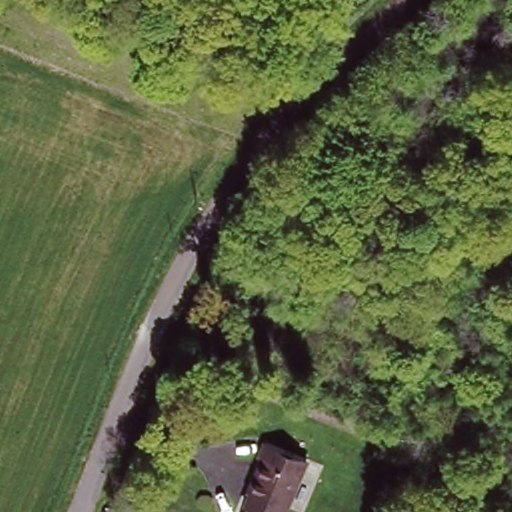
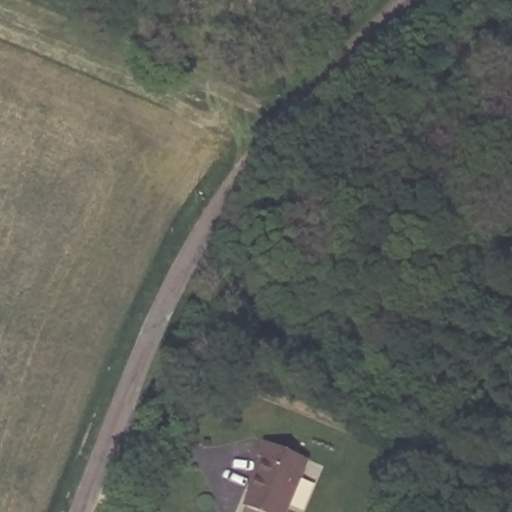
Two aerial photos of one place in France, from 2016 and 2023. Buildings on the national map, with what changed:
unchanged [(261,14),(265,0),(278,0),(274,18),(261,14)]
unchanged [(299,461),(279,512),(241,512),(241,511),(236,509),(255,460),(248,458),(253,444),(299,461)]
unchanged [(414,448),(409,460),(397,456),(403,444),(414,448)]

